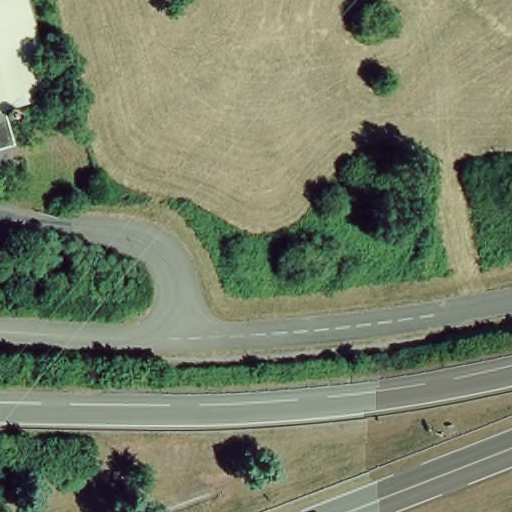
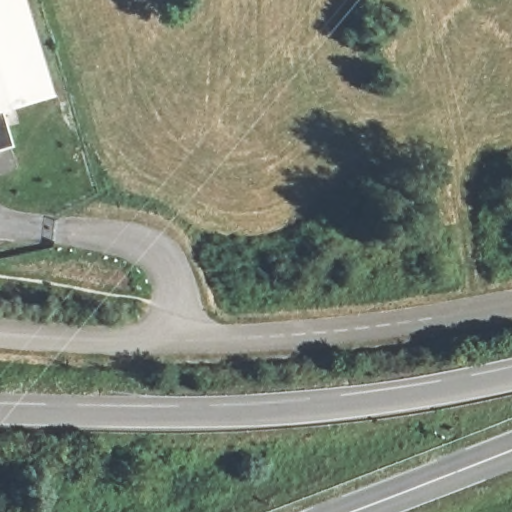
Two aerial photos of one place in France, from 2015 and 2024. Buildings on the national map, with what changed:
unchanged [(47,104),(0,115),(10,149),(0,152),(0,0),(20,0),(47,104)]

